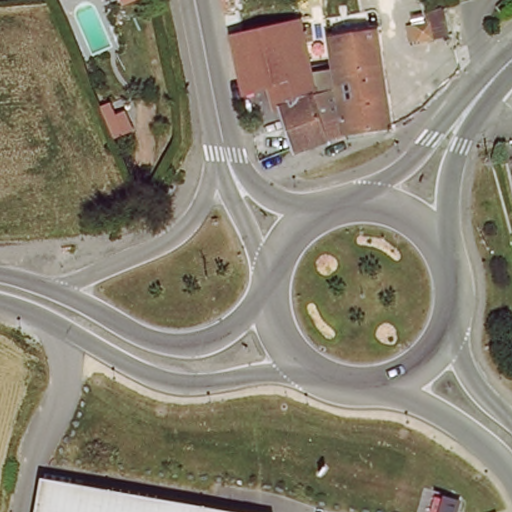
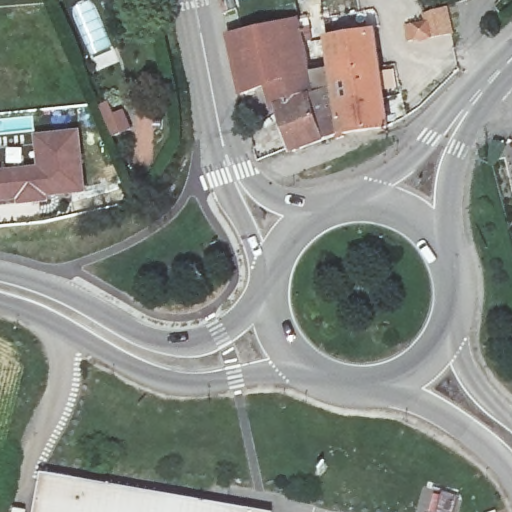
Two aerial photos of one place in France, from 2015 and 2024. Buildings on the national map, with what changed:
unchanged [(120,0),(134,0),(123,7),(120,0)]
unchanged [(288,156),(270,86),(241,90),(230,32),(230,31),(280,22),(278,12),(296,7),(298,18),(307,71),(307,72),(319,145),(288,156)]
unchanged [(435,27),(433,44),(410,50),(409,33),(435,27)]
unchanged [(334,67),(334,45),(382,35),(385,132),(367,140),(366,137),(339,139),(330,67),(334,67)]
unchanged [(319,145),(307,72),(307,71),(330,67),(339,139),(319,145)]
new [(38,168),(35,135),(82,130),(89,194),(51,197),(51,202),(18,206),(18,200),(0,203),(0,171),(38,168)]
unchanged [(234,512),(33,512),(38,478),(234,512)]

